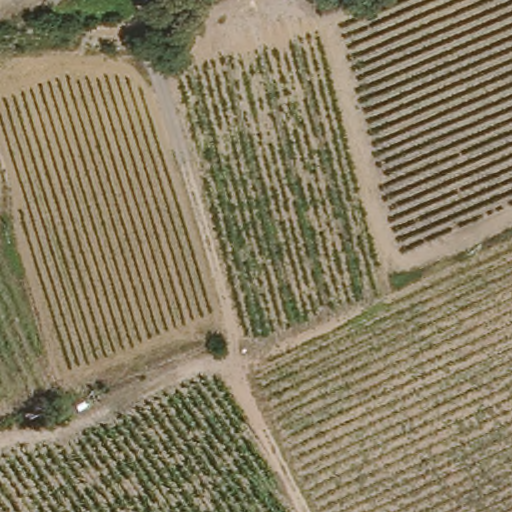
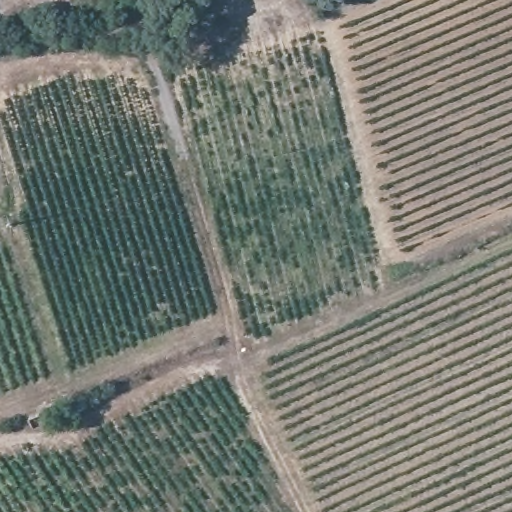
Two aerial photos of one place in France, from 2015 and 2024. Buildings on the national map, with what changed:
unchanged [(73,413),(77,431),(52,441),(45,424),(70,414),(73,413)]

